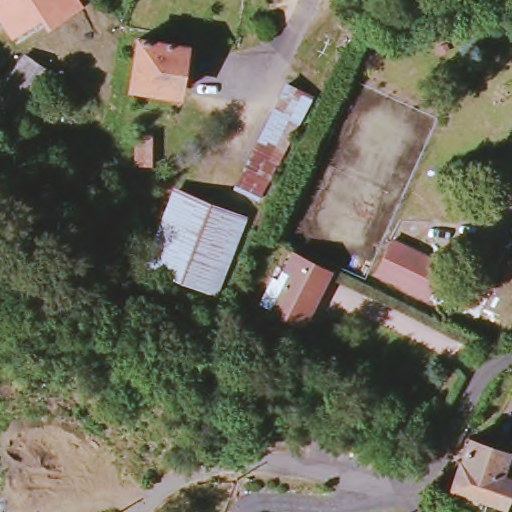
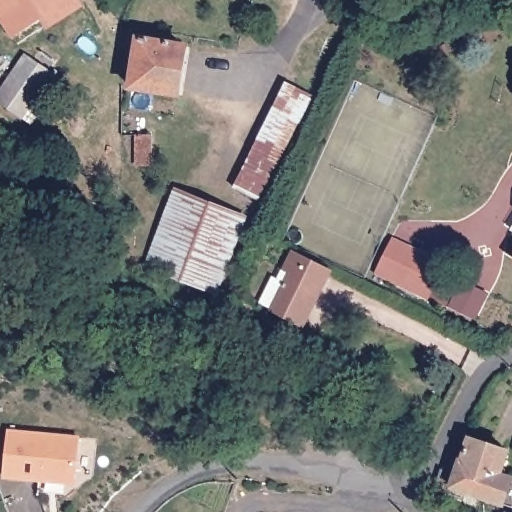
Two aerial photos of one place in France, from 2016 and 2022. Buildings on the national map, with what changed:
unchanged [(43,16),(10,37),(0,21),(0,0),(79,0),(81,4),(48,24),(43,16)]
unchanged [(133,86),(139,38),(185,44),(178,93),(133,86)]
unchanged [(0,108),(0,85),(21,54),(54,74),(24,122),(0,108)]
unchanged [(283,99),(305,111),(276,163),(264,186),(243,174),(255,151),(283,99)]
unchanged [(141,133),(156,133),(155,164),(141,164),(141,133)]
unchanged [(143,266),(174,190),(241,215),(211,292),(143,266)]
unchanged [(378,271),(392,237),(443,264),(428,298),(378,271)]
unchanged [(264,305),(278,277),(283,279),(286,270),(290,271),(298,254),(330,270),(306,323),(264,305)]
new [(6,431),(79,437),(74,487),(1,479),(6,431)]
unchanged [(468,493),(465,500),(445,494),(447,487),(453,488),(459,464),(464,465),(471,440),(508,451),(502,475),(512,478),(512,489),(507,505),(468,493)]

